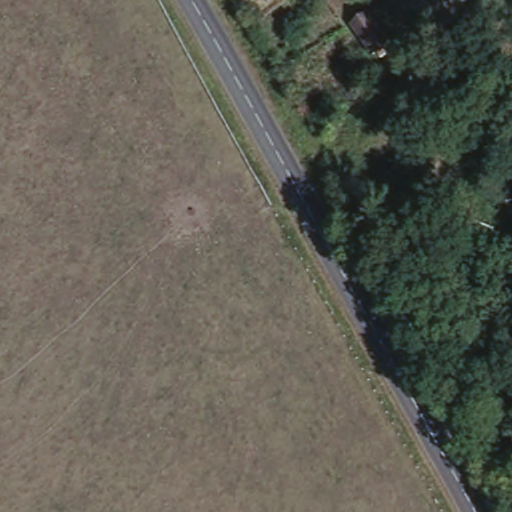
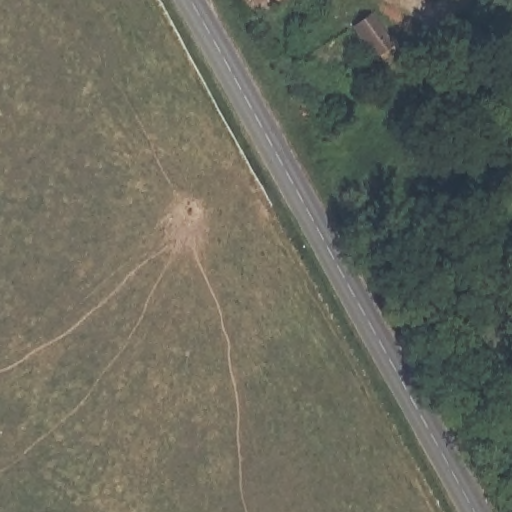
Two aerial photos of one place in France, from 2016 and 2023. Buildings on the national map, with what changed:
unchanged [(243,0),(259,0),(249,7),(243,0)]
unchanged [(379,4),(403,33),(368,61),(343,32),(379,4)]
unchanged [(377,77),(400,62),(422,92),(398,108),(377,77)]

